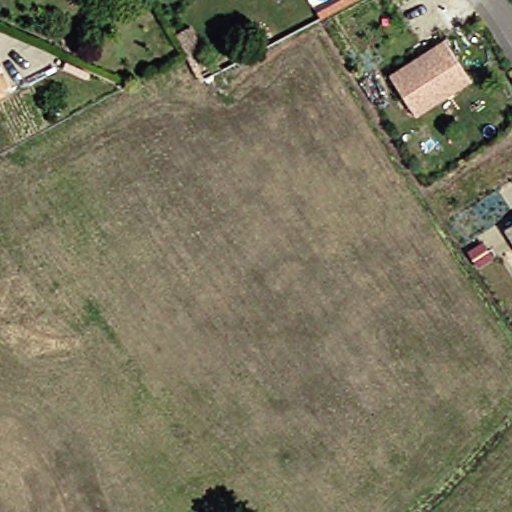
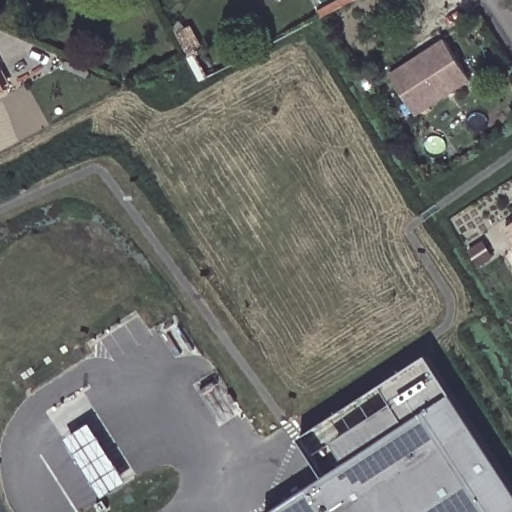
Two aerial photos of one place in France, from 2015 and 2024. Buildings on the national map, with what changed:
unchanged [(467,84),(412,119),(386,77),(441,43),(467,84)]
unchanged [(0,93),(0,67),(11,88),(0,93)]
unchanged [(502,231),(512,224),(512,245),(502,231)]
new [(326,477),(301,438),(430,355),(454,393),(512,483),(512,512),(271,512),(326,477)]
new [(88,425),(126,484),(101,500),(62,440),(88,425)]
demolished [(47,511),(48,512),(46,512),(47,511)]

